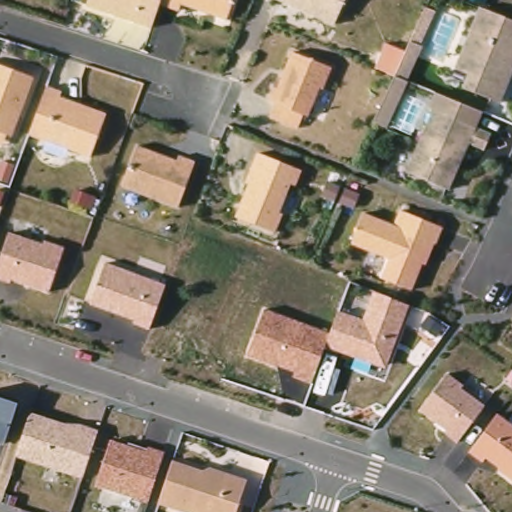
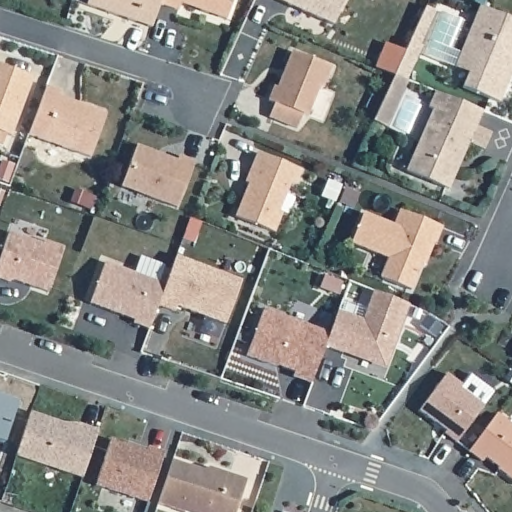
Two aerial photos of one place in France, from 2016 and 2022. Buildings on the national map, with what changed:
unchanged [(86,5),(88,0),(160,0),(159,4),(151,27),(86,5)]
unchanged [(159,4),(160,0),(232,0),(226,19),(200,10),(180,4),(177,10),(159,4)]
unchanged [(279,0),(344,0),(333,24),(279,0)]
unchanged [(482,0),(477,11),(460,3),(462,0),(482,0)]
unchanged [(435,11),(419,45),(422,46),(406,81),(393,76),(425,6),(435,11)]
unchanged [(455,58),(474,11),(512,27),(512,65),(495,107),(457,92),(463,77),(450,71),(455,58)]
unchanged [(277,88),(291,51),(330,68),(322,88),(319,87),(307,116),(302,114),(297,128),(268,117),(274,103),(268,101),(273,86),(277,88)]
unchanged [(0,64),(32,76),(10,136),(6,135),(2,146),(0,145),(0,64)]
unchanged [(61,91),(59,96),(105,114),(89,157),(28,135),(46,86),(61,91)]
unchanged [(483,149),(468,143),(448,189),(406,171),(433,109),(490,133),(483,149)]
unchanged [(176,161),(178,156),(194,161),(177,208),(121,187),(136,146),(176,161)]
unchanged [(285,183),(273,212),(276,214),(269,232),(230,217),(243,183),(240,181),(246,168),(285,183)]
unchanged [(335,188),(329,200),(317,194),(323,182),(335,188)]
unchanged [(344,189),(356,195),(350,207),(338,202),(344,189)]
unchanged [(425,264),(413,292),(381,278),(389,259),(352,244),(364,214),(395,226),(401,211),(443,228),(436,244),(428,265),(425,264)]
unchanged [(43,243),(45,240),(64,248),(49,293),(0,278),(0,254),(7,232),(43,243)]
new [(156,305),(164,284),(176,256),(240,280),(226,323),(175,308),(173,312),(156,305)]
unchanged [(102,263),(164,284),(147,329),(130,322),(132,317),(88,303),(102,263)]
unchanged [(334,311),(361,318),(371,292),(407,305),(385,366),(322,347),(334,311)]
unchanged [(265,308),(327,331),(322,347),(311,386),(291,379),(294,371),(247,357),(265,308)]
unchanged [(448,374),(463,386),(461,391),(481,405),(454,444),(418,414),(448,374)]
unchanged [(5,444),(0,442),(0,397),(16,404),(5,444)]
unchanged [(62,423),(75,423),(95,429),(80,478),(12,456),(29,413),(62,423)]
unchanged [(512,427),(512,480),(483,459),(478,463),(466,452),(496,416),(512,427)]
unchanged [(144,451),(145,446),(161,452),(146,501),(95,485),(109,440),(144,451)]
unchanged [(202,472),(210,468),(244,479),(234,512),(183,512),(156,504),(170,460),(202,472)]

